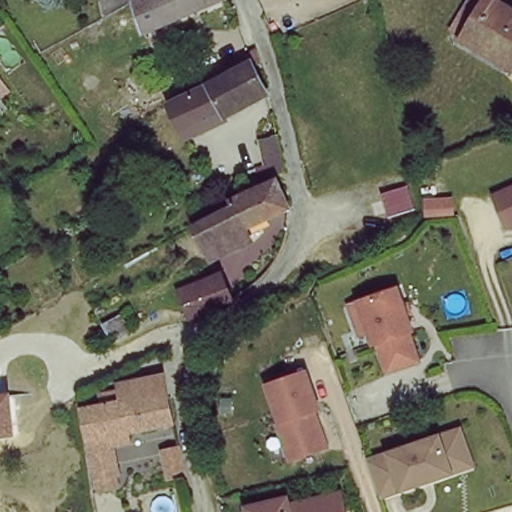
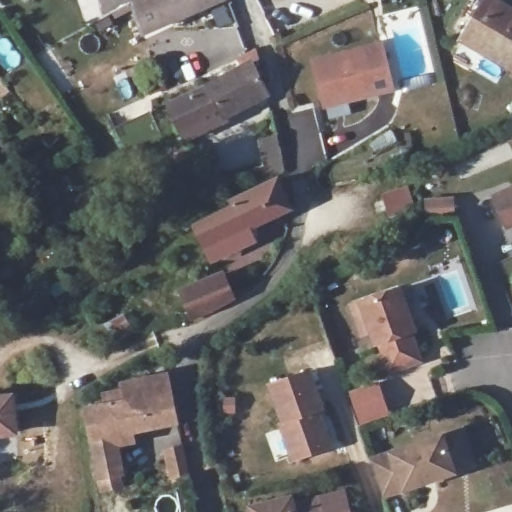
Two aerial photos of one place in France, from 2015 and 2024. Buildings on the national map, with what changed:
unchanged [(149,32),(138,4),(149,0),(227,0),(149,32)]
unchanged [(479,0),(498,0),(512,9),(512,67),(485,50),(468,40),(458,34),(479,0)]
new [(310,57),(382,39),(395,91),(322,108),(310,57)]
unchanged [(182,138),(168,107),(240,67),(238,63),(256,54),(261,64),(255,69),(265,93),(182,138)]
unchanged [(218,260),(215,253),(200,229),(240,205),(237,201),(244,197),(259,188),(278,177),(282,175),(292,194),(295,203),(275,217),(252,231),(256,238),(218,260)]
unchanged [(512,194),(512,219),(500,203),(512,194)]
unchanged [(190,315),(184,287),(226,277),(230,304),(190,315)]
unchanged [(415,328),(411,328),(416,359),(385,364),(380,334),(376,334),(374,322),(363,324),(358,293),(369,291),(408,285),(415,328)]
unchanged [(311,366),(323,403),(319,404),(331,441),(297,452),(273,379),(311,366)]
unchanged [(98,493),(90,413),(132,407),(130,380),(172,375),(170,382),(171,393),(180,426),(112,437),(115,490),(98,493)]
unchanged [(15,393),(17,435),(0,437),(0,394),(15,393)]
unchanged [(462,424),(477,459),(457,467),(388,496),(373,461),(442,432),(462,424)]
unchanged [(289,504),(338,490),(345,512),(250,512),(248,507),(287,497),(289,504)]

